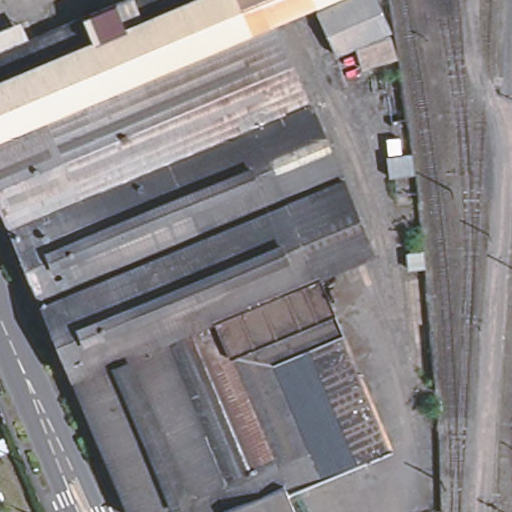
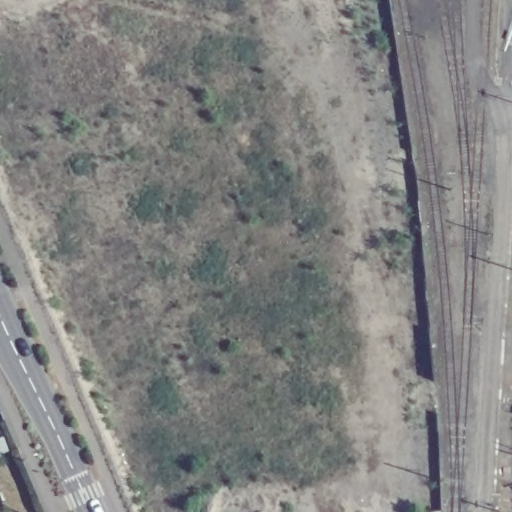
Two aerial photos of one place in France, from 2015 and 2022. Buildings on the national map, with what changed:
demolished [(318,278),(387,449),(288,495),(295,512),(117,512),(0,228),(0,51),(123,0),(369,0),(396,58),(376,64),(387,91),(349,103),(339,81),(358,74),(348,56),(331,61),(311,14),(278,30),(340,174),(376,255),(318,278)]

